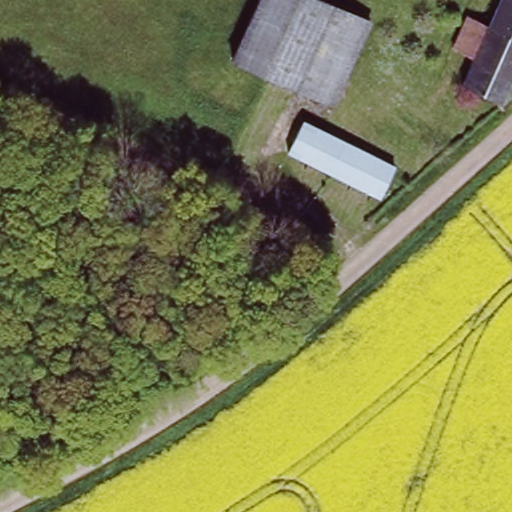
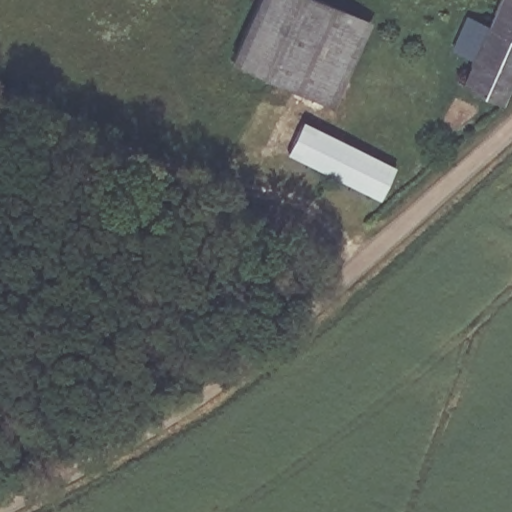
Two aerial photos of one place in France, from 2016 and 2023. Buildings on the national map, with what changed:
unchanged [(329,103),(230,60),(258,0),(320,0),(366,22),(329,103)]
unchanged [(512,0),(512,78),(504,94),(500,92),(463,74),(475,50),(455,41),(470,9),(489,19),(498,0),(512,0)]
unchanged [(400,165),(387,194),(294,151),(306,122),(400,165)]

